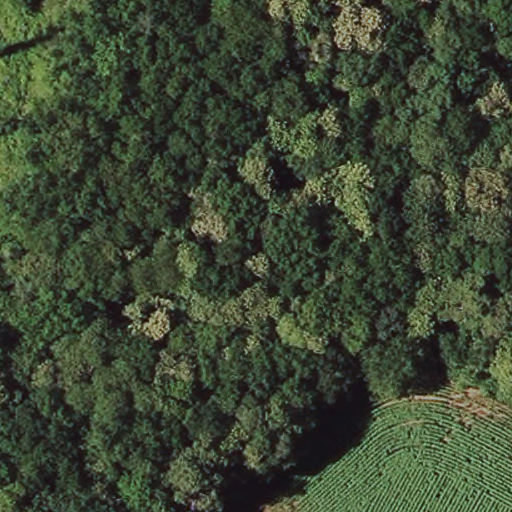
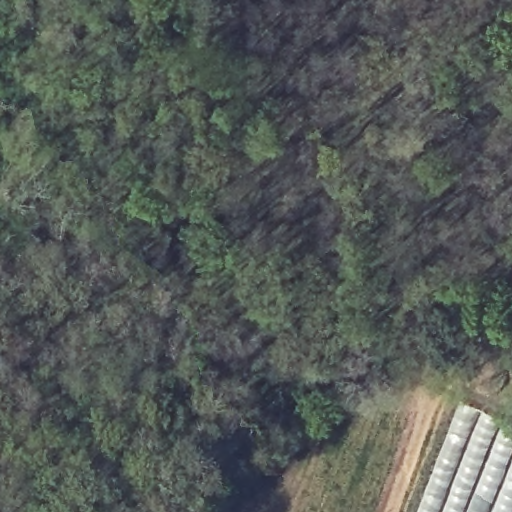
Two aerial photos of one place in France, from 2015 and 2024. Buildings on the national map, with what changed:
new [(512,422),(512,512),(417,512),(461,398),(512,422)]

